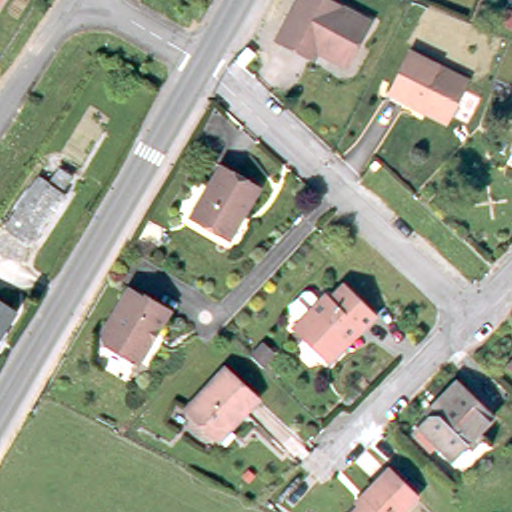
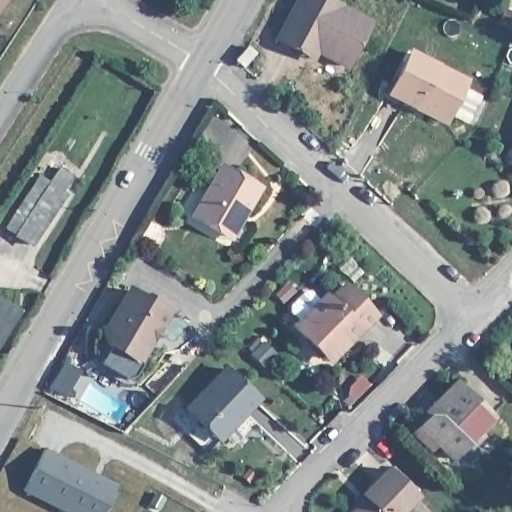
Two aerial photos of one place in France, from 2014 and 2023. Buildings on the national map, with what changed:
unchanged [(0,2),(0,0),(1,0),(0,2)]
unchanged [(300,45),(282,36),(300,0),(336,0),(372,18),(350,62),(320,47),(316,54),(300,45)]
unchanged [(237,60),(246,45),(255,51),(245,67),(237,60)]
unchanged [(394,89),(415,47),(470,75),(448,116),(430,107),(418,101),(394,89)]
unchanged [(225,234),(192,214),(224,163),(263,185),(247,211),(231,237),(225,234)]
unchanged [(20,214),(25,217),(53,172),(62,177),(68,181),(57,197),(60,199),(27,250),(19,244),(11,239),(5,234),(20,214)]
unchanged [(325,298),(340,283),(371,315),(355,330),(351,326),(321,356),(290,325),(321,294),(325,298)]
unchanged [(135,363),(102,344),(100,333),(126,291),(141,300),(143,297),(166,311),(155,330),(147,342),(135,363)]
unchanged [(14,312),(0,333),(0,303),(14,312)]
unchanged [(512,355),(512,372),(503,364),(512,355)]
unchanged [(215,436),(186,410),(227,370),(257,398),(228,429),(218,440),(215,436)]
unchanged [(428,412),(435,405),(460,381),(496,417),(482,431),(486,435),(477,443),(468,443),(455,457),(440,442),(432,450),(415,434),(432,416),(428,412)]
new [(67,512),(24,491),(43,451),(92,474),(90,480),(113,490),(102,512),(67,512)]
unchanged [(360,491),(385,467),(416,498),(403,512),(346,512),(355,503),(351,500),(360,491)]

